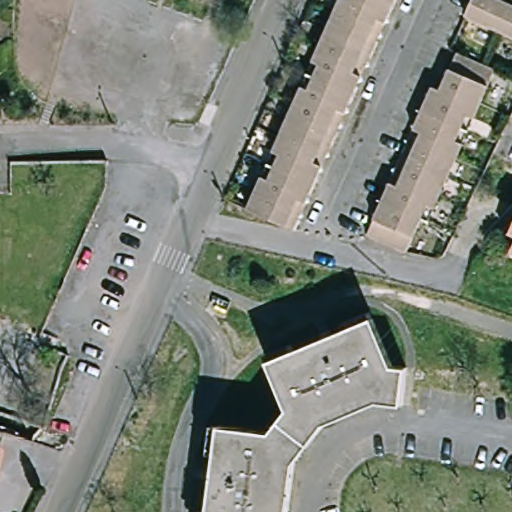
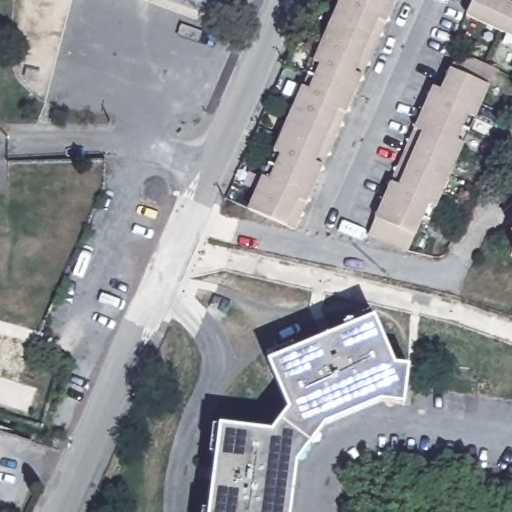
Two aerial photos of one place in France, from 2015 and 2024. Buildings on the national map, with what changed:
unchanged [(315,61),(342,0),(397,0),(294,229),(248,209),(263,176),(274,150),(303,86),(315,61)]
unchanged [(470,15),(477,0),(512,0),(512,35),(470,15)]
unchanged [(422,219),(407,252),(368,235),(434,87),(442,91),(459,54),(497,71),(475,119),(464,144),(434,209),(429,221),(422,219)]
unchanged [(214,294),(233,301),(226,315),(208,308),(214,294)]
unchanged [(275,431),(293,410),(273,360),(378,315),(397,363),(412,365),(408,394),(407,404),(376,401),(336,418),(298,466),(291,510),(292,512),(213,512),(225,424),(275,431)]
unchanged [(0,438),(0,433),(1,433),(0,438)]

